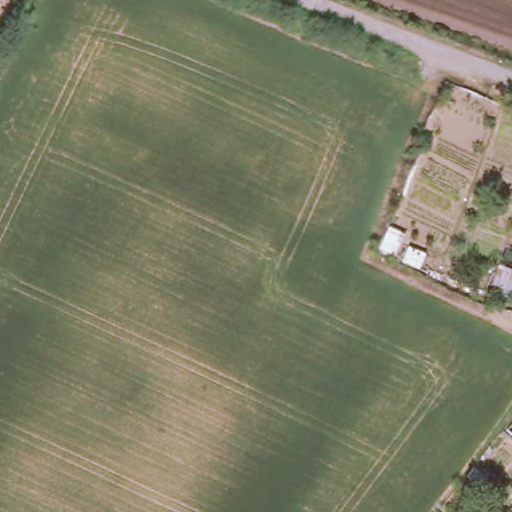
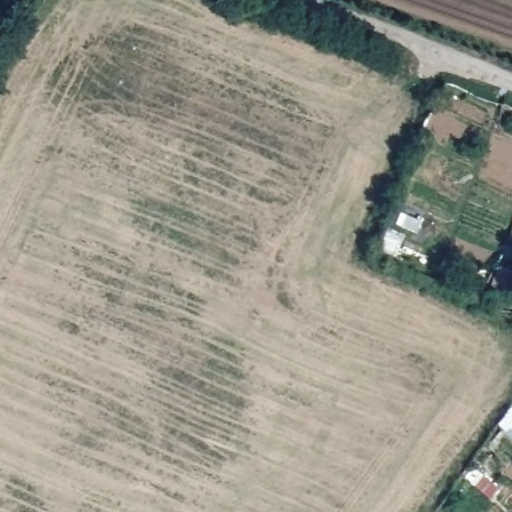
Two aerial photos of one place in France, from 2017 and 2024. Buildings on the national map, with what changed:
unchanged [(512,275),(512,304),(512,305),(490,299),(498,270),(512,275)]

